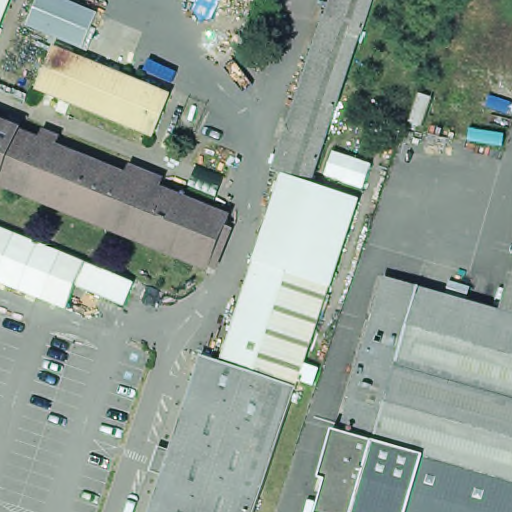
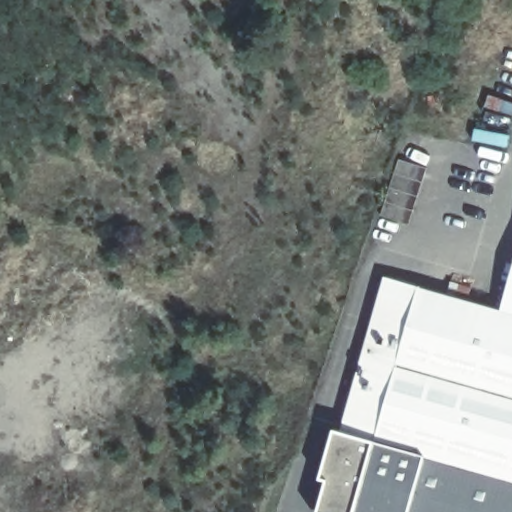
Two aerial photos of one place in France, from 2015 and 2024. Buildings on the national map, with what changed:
demolished [(0,0),(10,0),(0,25),(0,0)]
demolished [(283,174),(273,170),(327,0),(368,0),(311,183),(283,174)]
demolished [(172,95),(157,136),(40,89),(55,49),(172,95)]
demolished [(0,182),(0,177),(1,175),(0,175),(0,120),(20,129),(17,135),(227,219),(210,264),(0,182)]
demolished [(221,361),(255,260),(287,272),(254,372),(221,361)]
demolished [(287,272),(329,287),(296,386),(254,372),(287,272)]
unchanged [(327,482),(322,479),(335,431),(348,435),(387,275),(503,313),(512,282),(512,512),(319,512),(327,482)]
demolished [(202,355),(221,361),(254,372),(296,386),(255,512),(166,512),(152,507),(202,355)]
demolished [(166,512),(150,512),(152,507),(166,512)]

